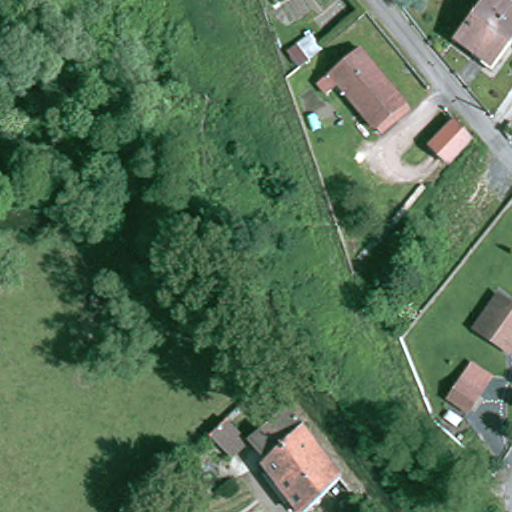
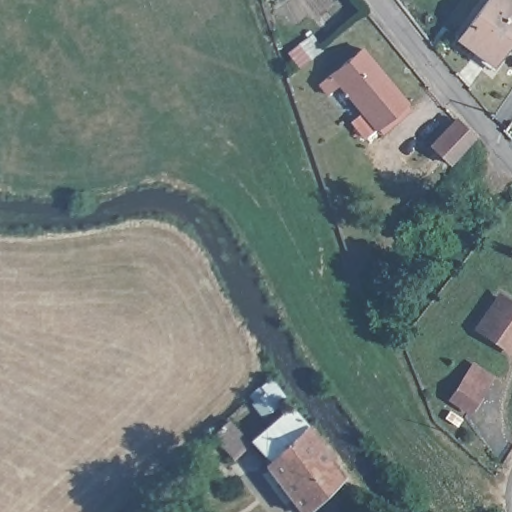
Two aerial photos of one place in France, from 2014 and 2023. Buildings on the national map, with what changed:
unchanged [(488,0),(502,0),(512,7),(512,35),(491,63),(459,39),(488,0)]
unchanged [(376,130),(330,76),(368,42),(407,103),(376,130)]
unchanged [(455,119),(474,140),(452,165),(429,144),(455,119)]
unchanged [(512,349),(474,328),(498,289),(512,299),(512,349)]
unchanged [(512,376),(504,370),(512,358),(512,376)]
unchanged [(487,393),(476,414),(449,396),(462,375),(487,393)]
unchanged [(242,459),(212,435),(234,418),(255,440),(242,459)]
unchanged [(304,427),(341,477),(341,478),(305,512),(301,512),(264,464),(304,427)]

